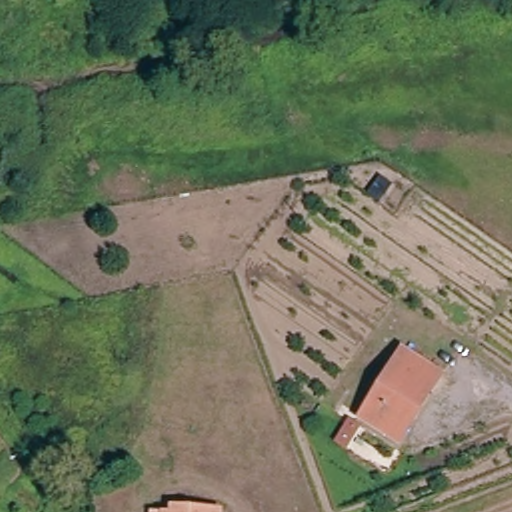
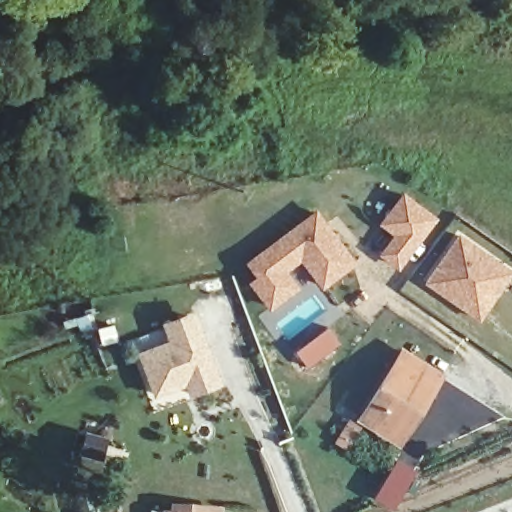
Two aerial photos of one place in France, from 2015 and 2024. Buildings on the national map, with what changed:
new [(438,219),(400,272),(377,257),(393,235),(380,224),(404,192),(438,219)]
new [(357,263),(322,290),(302,261),(288,271),(300,288),(271,310),(248,281),(255,275),(245,262),(317,208),(357,263)]
new [(512,270),(512,276),(480,322),(424,283),(459,233),(512,270)]
new [(223,384),(189,397),(187,387),(155,397),(138,351),(169,340),(163,322),(195,310),(223,384)]
unchanged [(441,384),(419,419),(409,413),(390,444),(362,427),(402,360),(441,384)]

